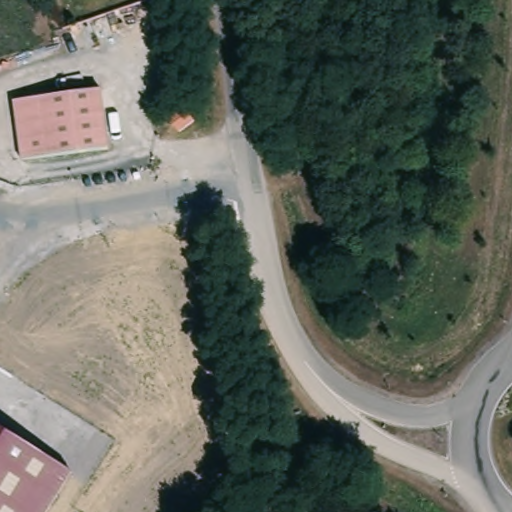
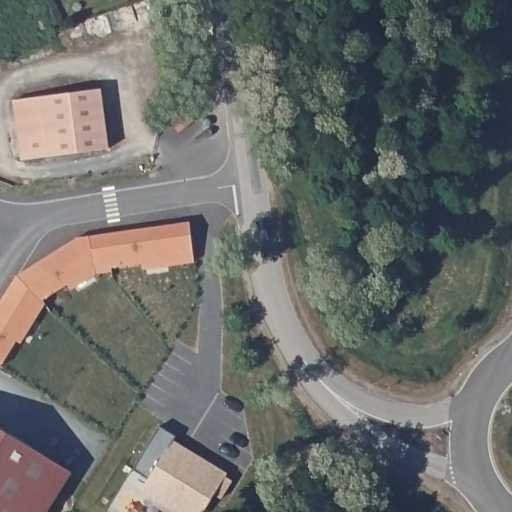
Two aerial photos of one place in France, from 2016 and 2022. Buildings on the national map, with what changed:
unchanged [(101,91),(109,151),(47,158),(40,99),(101,91)]
unchanged [(47,158),(17,161),(10,103),(40,99),(47,158)]
unchanged [(200,123),(183,133),(172,116),(188,108),(200,123)]
new [(79,235),(190,220),(195,262),(144,269),(144,262),(114,266),(115,272),(97,273),(72,290),(67,285),(43,299),(47,303),(23,342),(17,338),(0,367),(0,301),(16,274),(79,235)]
unchanged [(45,512),(0,512),(0,426),(71,471),(45,512)]
new [(143,492),(150,480),(135,470),(161,427),(177,437),(175,441),(201,457),(229,474),(227,477),(234,482),(223,499),(216,495),(206,512),(164,512),(155,505),(157,501),(143,492)]

